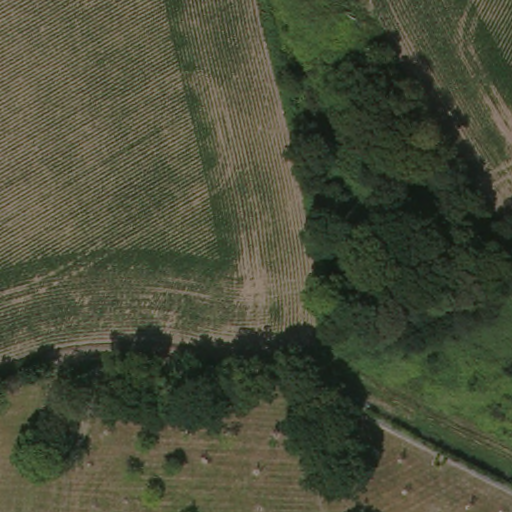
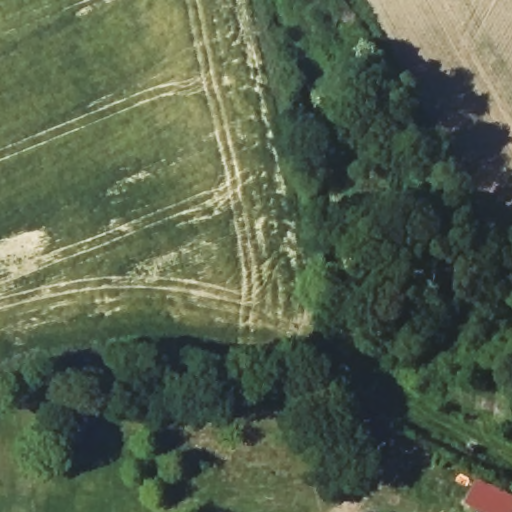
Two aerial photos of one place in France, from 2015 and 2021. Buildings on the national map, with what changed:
new [(512,512),(487,512),(467,502),(478,478),(512,494),(512,512)]

